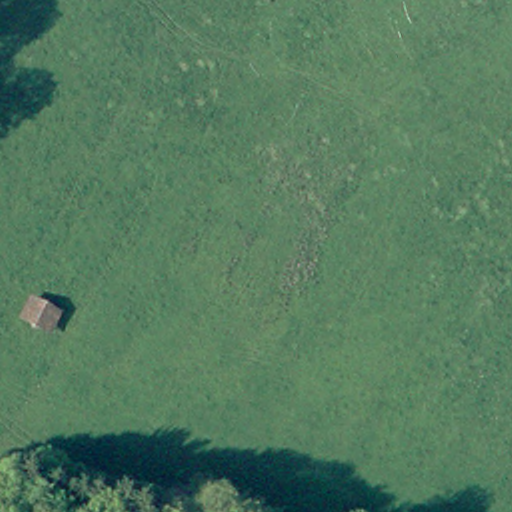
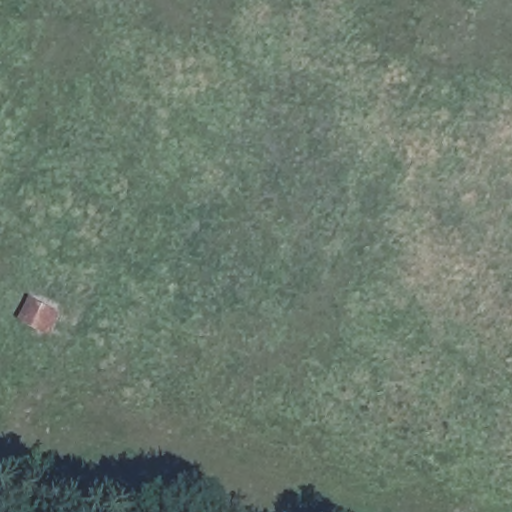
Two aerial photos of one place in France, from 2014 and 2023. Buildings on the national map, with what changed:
unchanged [(60,309),(49,333),(10,316),(24,289),(60,309)]

